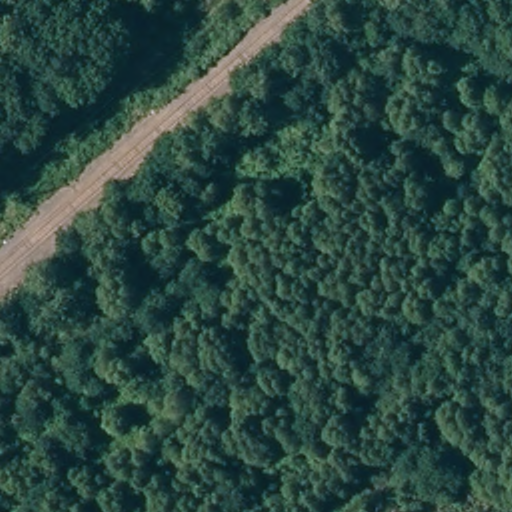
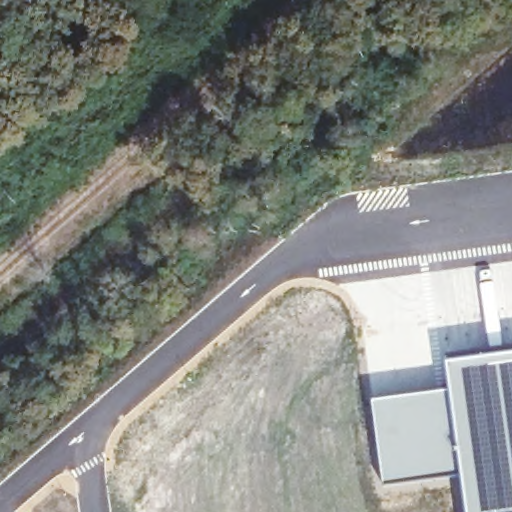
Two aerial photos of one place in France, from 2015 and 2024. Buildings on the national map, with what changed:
new [(385,486),(375,401),(452,391),(448,360),(512,352),(512,512),(468,512),(463,475),(385,486)]

